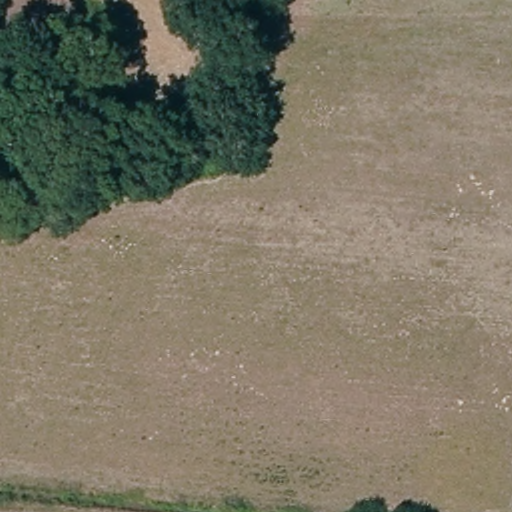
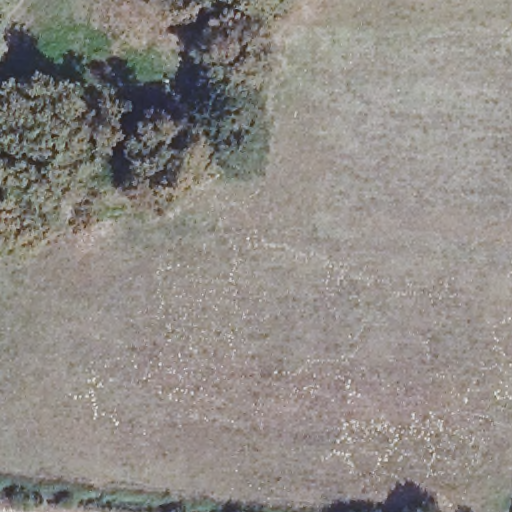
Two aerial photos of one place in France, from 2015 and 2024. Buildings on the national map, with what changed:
[]

